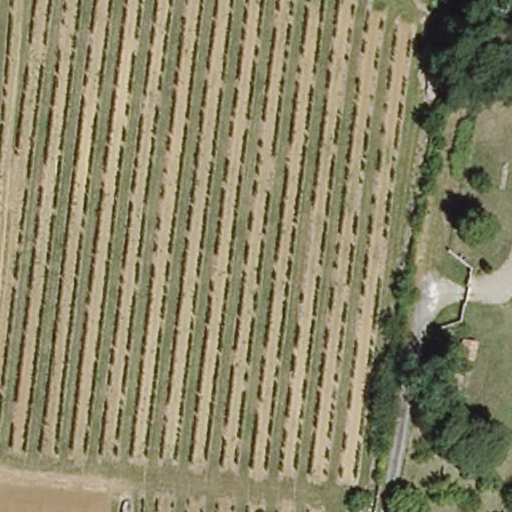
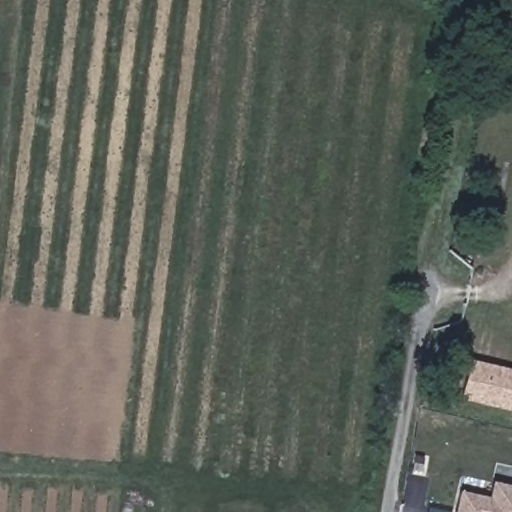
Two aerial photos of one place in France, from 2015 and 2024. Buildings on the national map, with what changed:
new [(512,411),(461,399),(469,359),(512,369),(512,411)]
new [(460,490),(489,496),(492,481),(512,485),(512,512),(455,512),(460,490)]

